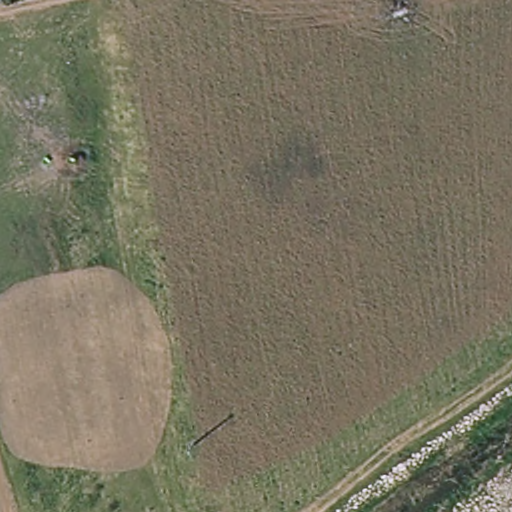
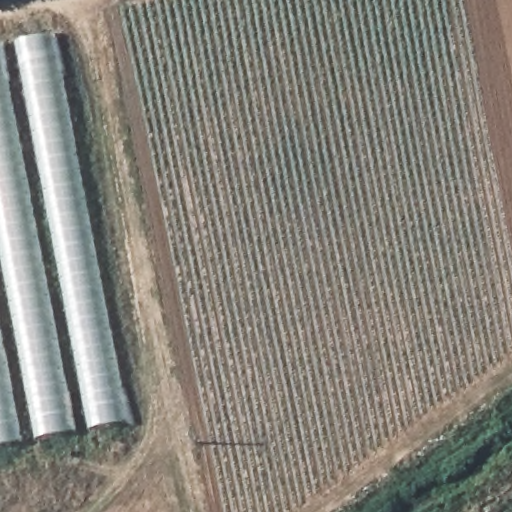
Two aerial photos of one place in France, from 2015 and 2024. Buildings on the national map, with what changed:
new [(55,32),(130,422),(0,446),(0,42),(55,32)]

